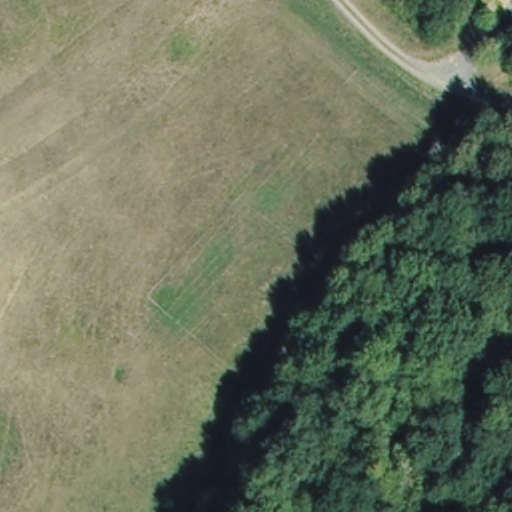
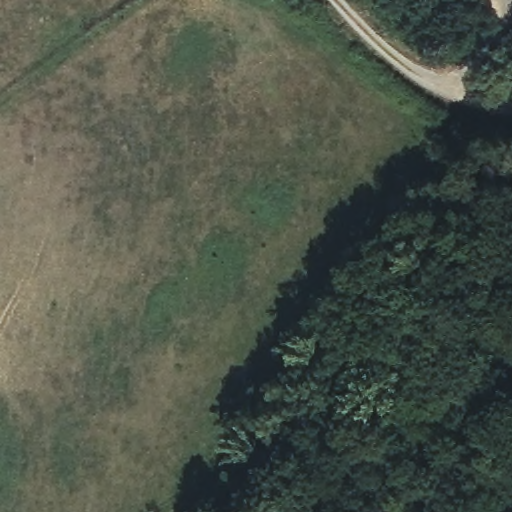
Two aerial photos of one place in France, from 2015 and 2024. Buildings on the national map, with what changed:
[]

